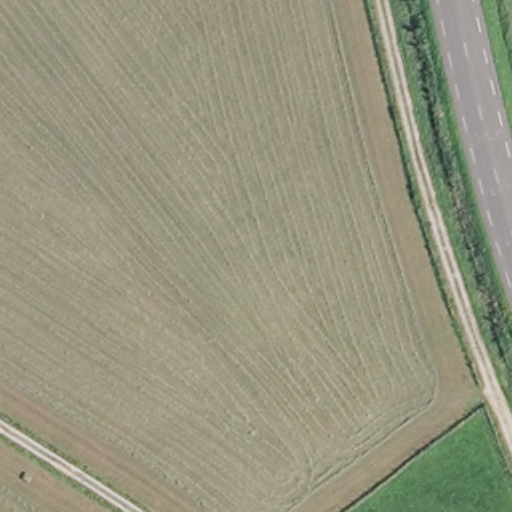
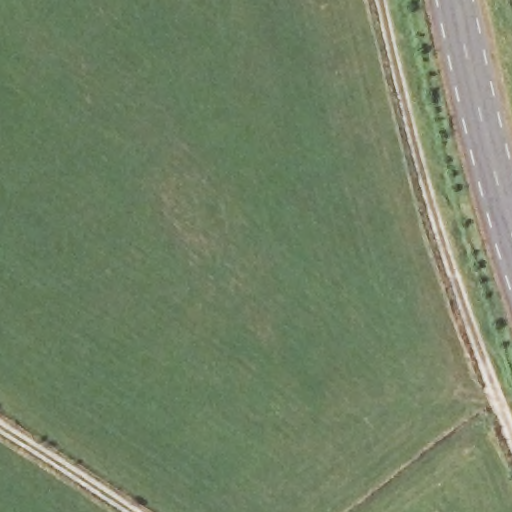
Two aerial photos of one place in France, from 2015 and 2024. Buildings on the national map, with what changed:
[]

